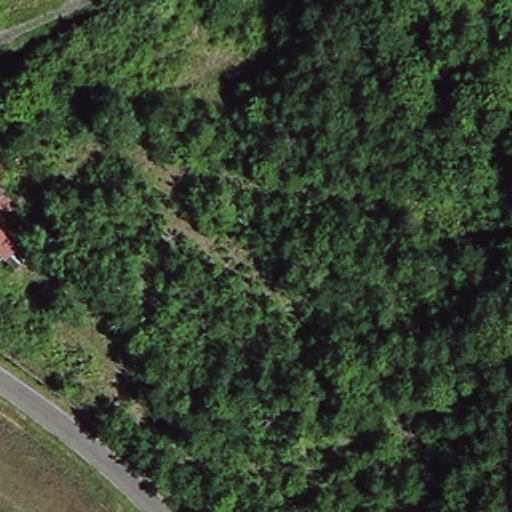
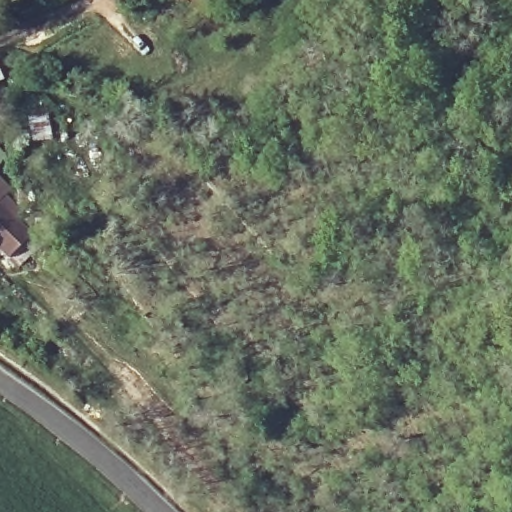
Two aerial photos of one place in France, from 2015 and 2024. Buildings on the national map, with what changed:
unchanged [(0,205),(0,194),(4,197),(0,205)]
unchanged [(12,227),(25,239),(5,261),(0,256),(0,205),(17,221),(12,227)]

